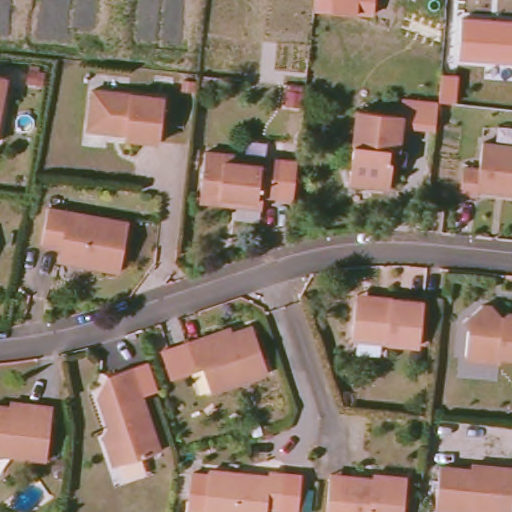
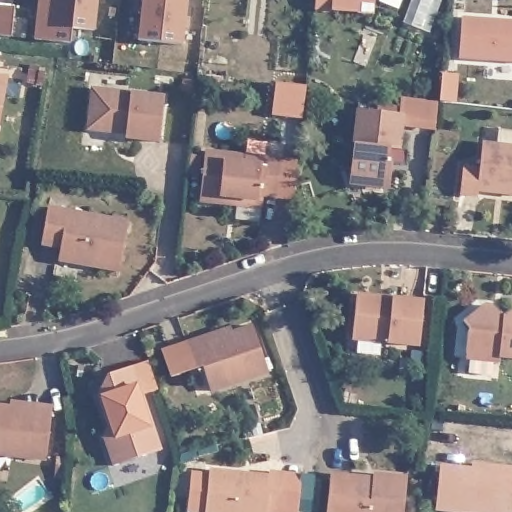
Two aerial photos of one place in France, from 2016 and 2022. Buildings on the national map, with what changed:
new [(72,27),(70,42),(33,38),(38,0),(98,0),(95,31),(72,27)]
new [(184,45),(138,40),(143,0),(187,0),(184,45)]
unchanged [(374,17),(315,11),(316,0),(376,0),(374,17)]
unchanged [(512,63),(460,59),(463,18),(512,21),(512,63)]
unchanged [(402,96),(438,100),(441,72),(458,74),(455,103),(439,103),(435,131),(404,129),(405,119),(398,119),(402,96)]
unchanged [(11,76),(0,135),(0,74),(11,76)]
unchanged [(165,96),(162,141),(125,138),(126,129),(114,128),(113,131),(89,129),(93,90),(165,96)]
unchanged [(405,119),(402,153),(390,152),(388,164),(393,168),(391,189),(353,186),(361,115),(405,119)]
unchanged [(512,193),(482,190),(482,194),(462,192),(464,167),(482,169),(485,142),(512,144),(512,193)]
unchanged [(282,159),(279,194),(262,193),(260,206),(201,201),(205,152),(282,159)]
unchanged [(127,215),(122,263),(62,257),(62,245),(44,243),(47,207),(127,215)]
unchanged [(422,343),(355,337),(357,302),(395,304),(396,298),(423,299),(422,343)]
unchanged [(497,361),(464,357),(467,336),(468,327),(462,318),(483,306),(492,316),(504,316),(504,312),(512,312),(512,358),(497,356),(497,361)]
unchanged [(268,373),(213,394),(205,369),(197,371),(187,345),(210,337),(212,342),(250,328),(268,373)]
unchanged [(155,453),(117,464),(108,438),(116,435),(100,391),(110,373),(134,365),(160,439),(163,449),(155,453)]
unchanged [(47,463),(0,457),(0,408),(11,410),(12,404),(35,407),(55,409),(47,463)]
unchanged [(502,462),(512,463),(512,512),(481,512),(440,509),(442,464),(502,468),(502,462)]
unchanged [(334,512),(328,512),(332,476),(350,478),(350,472),(368,474),(367,478),(376,479),(377,470),(408,473),(403,512),(334,512)]
unchanged [(271,472),(285,474),(282,511),(268,510),(268,512),(208,512),(212,471),(270,478),(271,472)]

